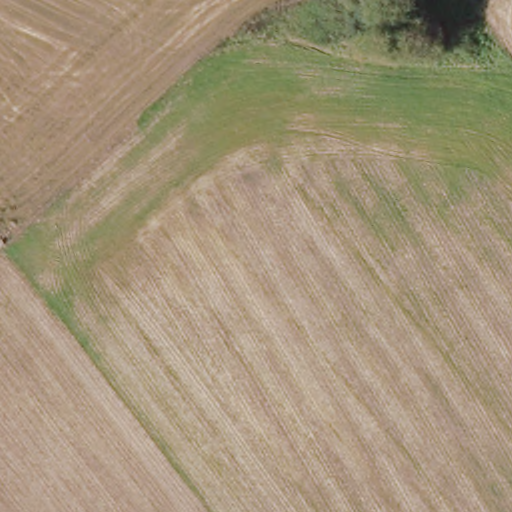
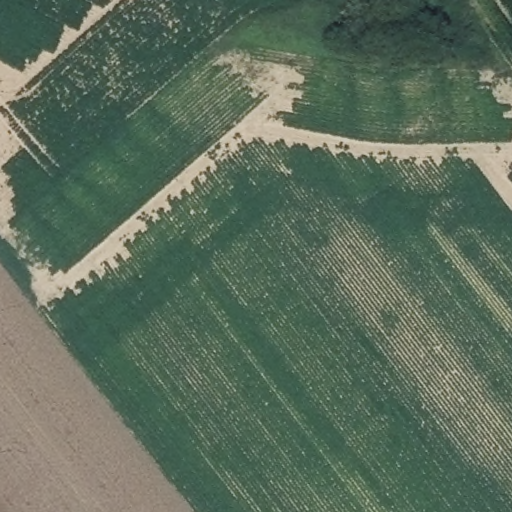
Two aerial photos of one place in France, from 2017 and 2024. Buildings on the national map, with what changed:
unchanged [(459,65),(388,58),(390,31),(393,5),(467,12),(463,36),(459,65)]

